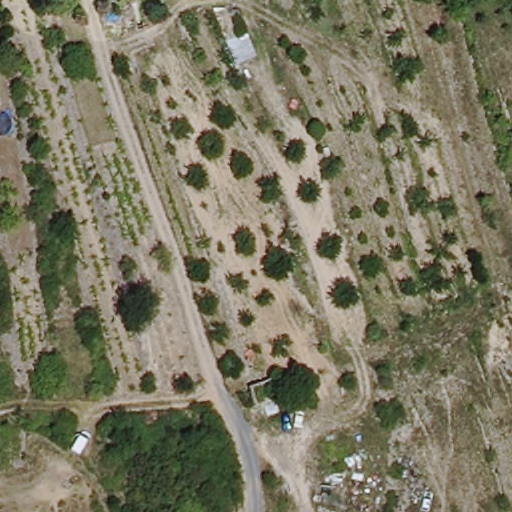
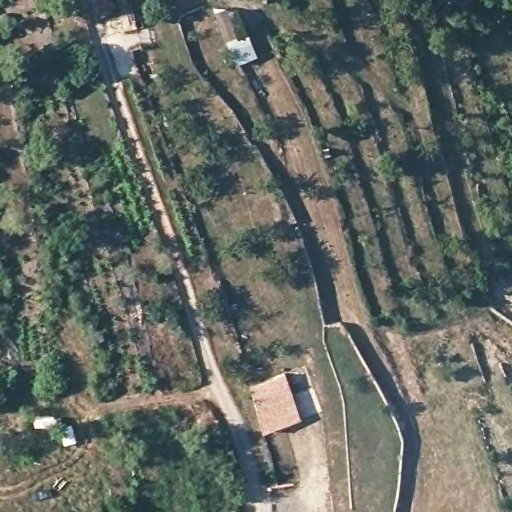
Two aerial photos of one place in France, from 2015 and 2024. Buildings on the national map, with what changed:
new [(302,422),(265,434),(250,387),(287,375),(302,422)]

